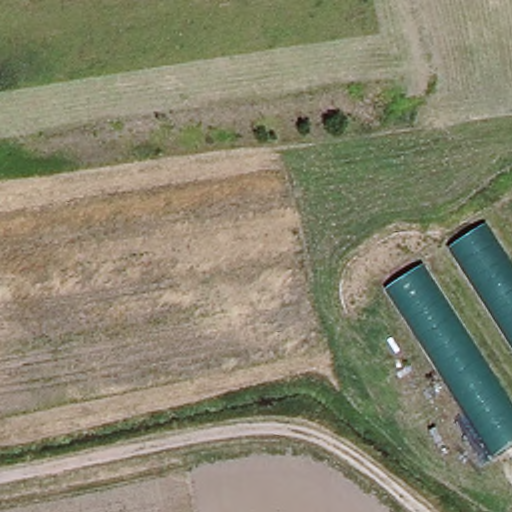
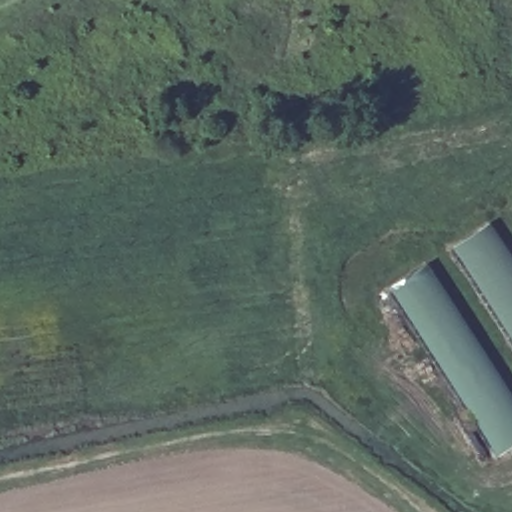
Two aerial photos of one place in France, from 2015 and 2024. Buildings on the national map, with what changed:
unchanged [(512,351),(472,292),(446,253),(483,228),(512,270),(512,351)]
unchanged [(512,404),(512,450),(495,461),(405,327),(383,295),(421,269),(445,306),(512,404)]

